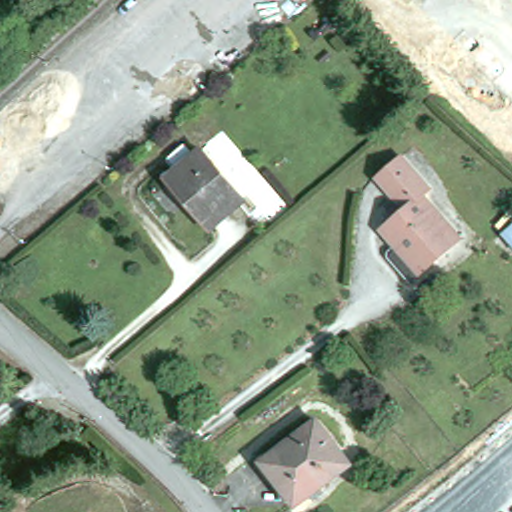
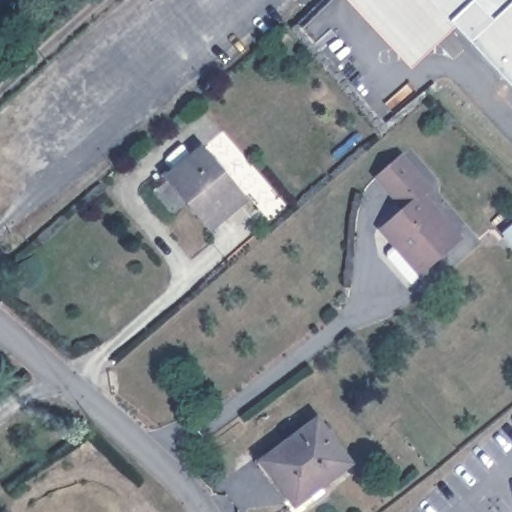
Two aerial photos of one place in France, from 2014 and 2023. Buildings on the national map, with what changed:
new [(410,69),(345,0),(512,0),(512,88),(455,27),(410,69)]
unchanged [(201,148),(244,198),(210,227),(167,176),(201,148)]
unchanged [(402,149),(430,182),(423,188),(461,232),(409,276),(387,250),(387,245),(395,239),(380,223),(405,203),(376,171),(402,149)]
unchanged [(512,227),(512,243),(504,234),(512,227)]
unchanged [(317,419),(349,462),(295,502),(262,460),(317,419)]

